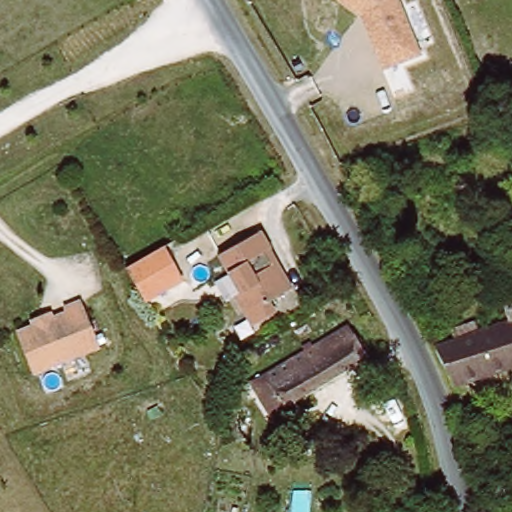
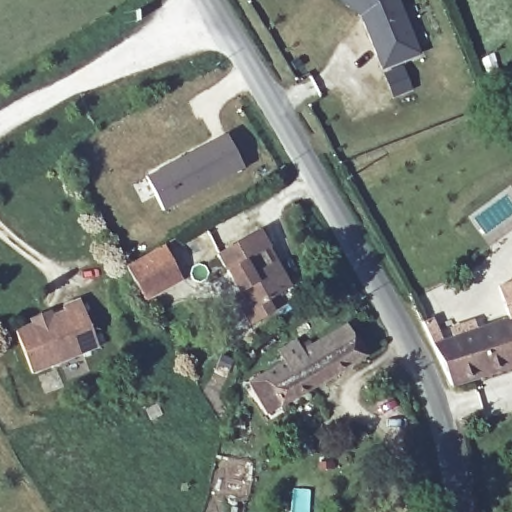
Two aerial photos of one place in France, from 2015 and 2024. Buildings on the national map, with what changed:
unchanged [(380,61),(358,10),(344,0),(398,0),(416,47),(380,61)]
new [(164,210),(146,177),(227,134),(245,166),(164,210)]
unchanged [(276,243),(270,250),(293,287),(273,301),(279,312),(261,323),(241,295),(246,291),(223,254),(265,227),(276,243)]
unchanged [(183,281),(150,302),(131,270),(165,249),(183,281)]
unchanged [(501,290),(512,286),(512,322),(501,290)]
unchanged [(66,308),(65,304),(81,296),(100,342),(35,369),(18,328),(66,308)]
unchanged [(248,380),(261,373),(347,322),(365,354),(279,404),(267,410),(248,380)]
unchanged [(445,336),(449,345),(512,324),(512,371),(455,390),(432,341),(445,336)]

